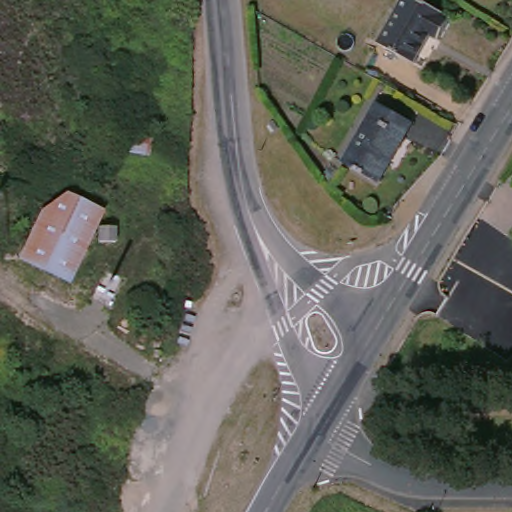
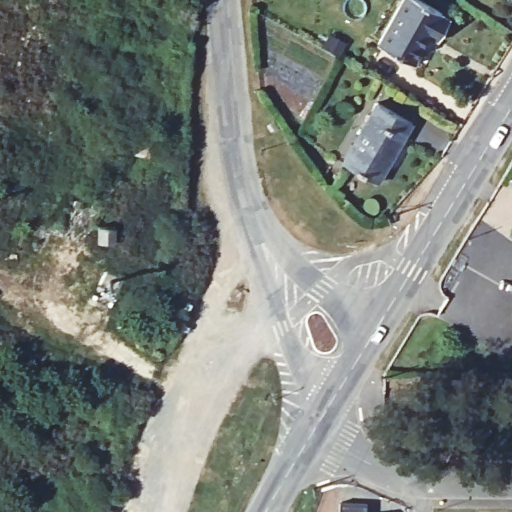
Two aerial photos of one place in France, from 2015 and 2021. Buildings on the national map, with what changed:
unchanged [(443,18),(454,26),(438,54),(426,46),(410,69),(376,46),(404,0),(426,0),(446,10),(443,18)]
unchanged [(412,123),(383,176),(349,155),(381,104),(412,123)]
unchanged [(127,157),(130,134),(155,136),(153,159),(127,157)]
demolished [(71,289),(16,265),(42,211),(61,197),(111,217),(71,289)]
unchanged [(139,258),(131,259),(128,246),(144,241),(146,257),(139,258)]
new [(340,503),(368,505),(368,512),(340,512),(340,503)]

